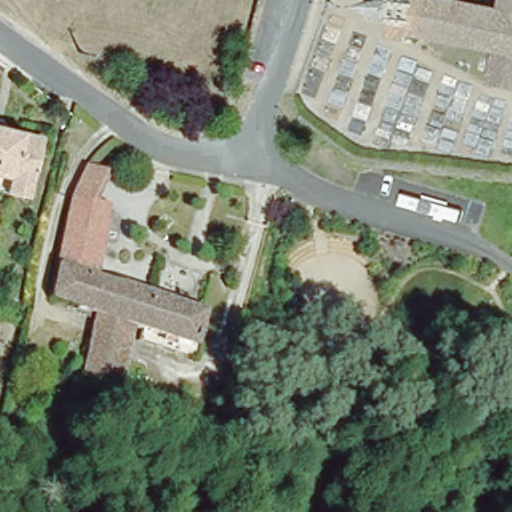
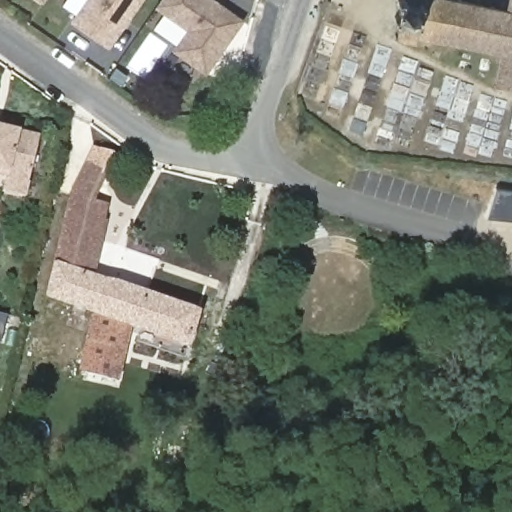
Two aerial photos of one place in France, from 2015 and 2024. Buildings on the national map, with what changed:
new [(38,0),(45,0),(42,4),(38,0)]
new [(71,23),(87,0),(144,0),(109,49),(71,23)]
new [(172,51),(185,33),(153,9),(160,0),(215,0),(244,20),(206,76),(172,51)]
unchanged [(492,83),(500,47),(490,44),(489,48),(483,46),(483,44),(453,37),(453,40),(445,39),(446,35),(417,29),(416,34),(421,35),(420,39),(415,39),(414,43),(410,41),(411,38),(399,35),(399,39),(395,39),(396,34),(392,34),(393,29),(398,30),(401,18),(396,16),(397,11),(402,12),(405,0),(483,0),(492,2),(493,0),(495,0),(499,1),(499,4),(509,5),(510,0),(512,0),(512,86),(492,83)]
unchanged [(0,128),(41,138),(26,199),(5,194),(8,179),(0,177),(0,128)]
unchanged [(5,194),(0,193),(0,177),(8,179),(5,194)]
new [(490,219),(492,190),(512,192),(512,220),(490,219)]
unchanged [(88,317),(42,300),(66,200),(97,208),(95,224),(98,224),(85,279),(190,319),(179,351),(121,329),(88,317)]
new [(1,345),(0,345),(0,315),(8,318),(1,345)]
unchanged [(108,386),(74,377),(88,317),(121,329),(108,386)]

